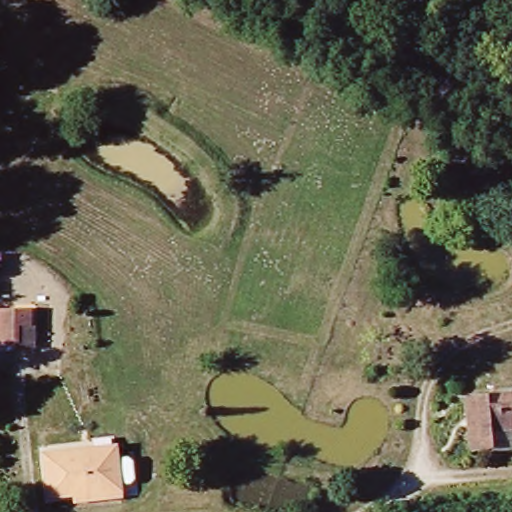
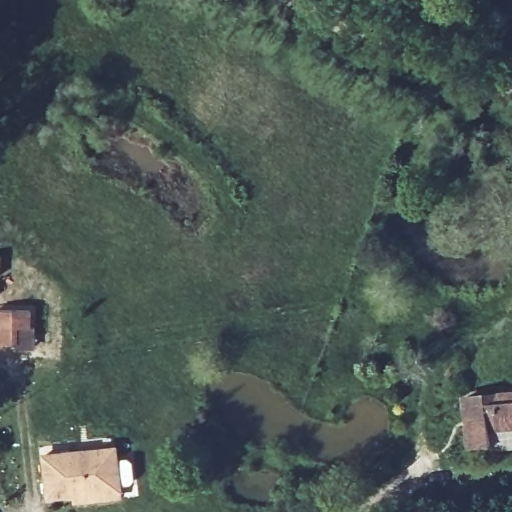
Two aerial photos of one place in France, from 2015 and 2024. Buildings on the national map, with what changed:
unchanged [(2,270),(0,270),(0,252),(1,252),(2,270)]
unchanged [(3,283),(3,294),(0,294),(0,283),(3,283)]
unchanged [(1,339),(0,331),(0,310),(34,310),(34,325),(21,327),(20,340),(1,339)]
unchanged [(499,443),(477,445),(474,396),(512,392),(512,428),(497,430),(499,443)]
unchanged [(125,499),(73,503),(72,499),(46,501),(42,452),(121,444),(122,450),(52,455),(55,496),(125,490),(125,499)]
unchanged [(52,455),(122,450),(125,490),(55,496),(52,455)]

